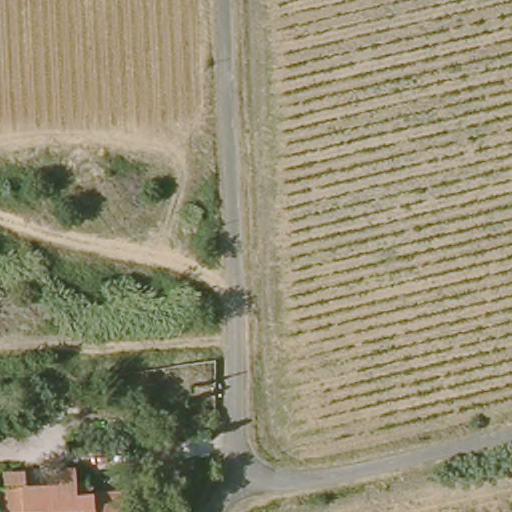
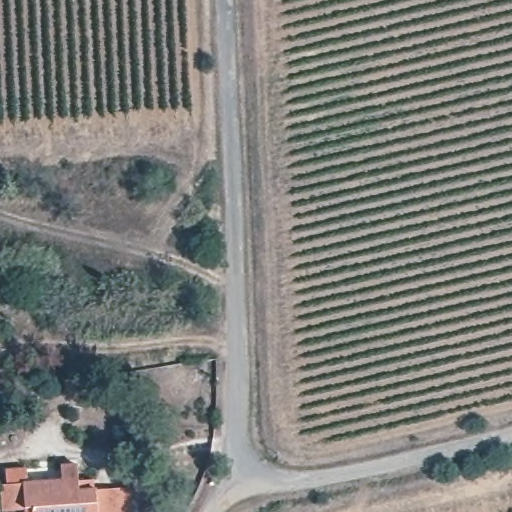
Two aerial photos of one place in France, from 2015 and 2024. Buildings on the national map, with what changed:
unchanged [(25,500),(0,503),(0,478),(29,475),(29,481),(66,477),(65,471),(79,469),(81,493),(113,490),(116,512),(26,512),(25,500)]

